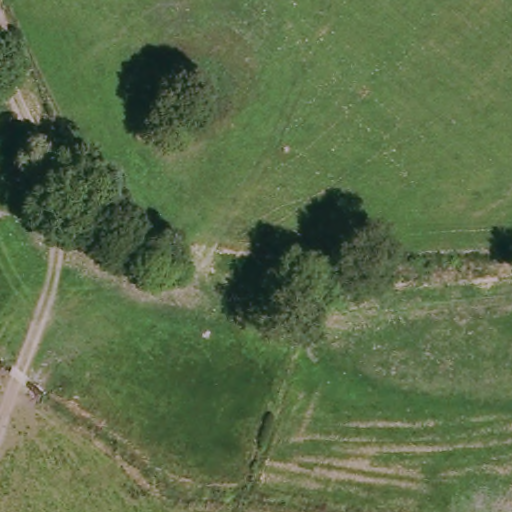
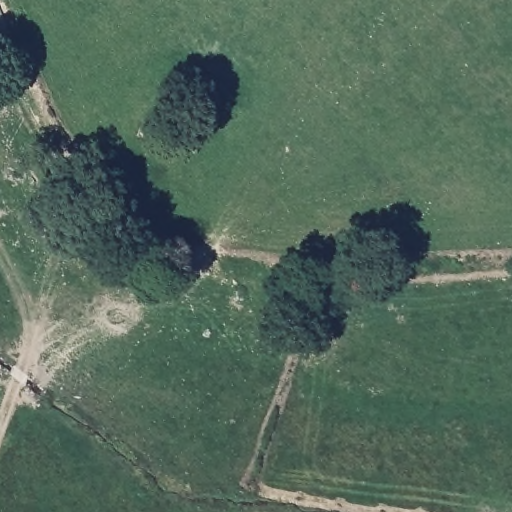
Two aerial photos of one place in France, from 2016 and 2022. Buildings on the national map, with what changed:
unchanged [(0,38),(0,3),(13,32),(0,38)]

